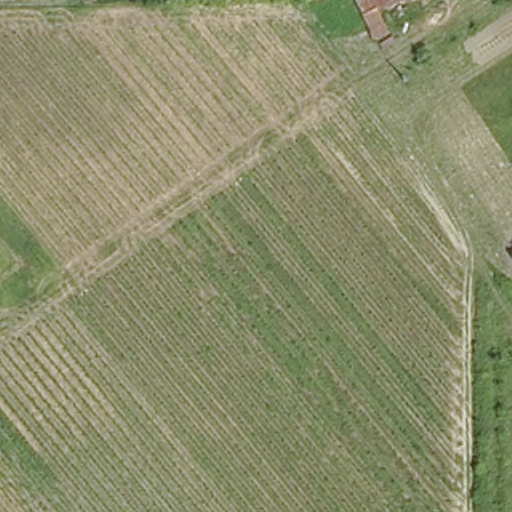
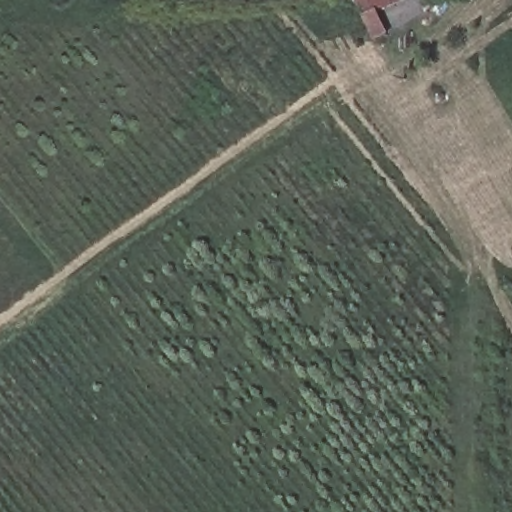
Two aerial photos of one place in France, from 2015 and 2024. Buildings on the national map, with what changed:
unchanged [(377,7),(381,17),(367,25),(353,0),(392,0),(377,7)]

